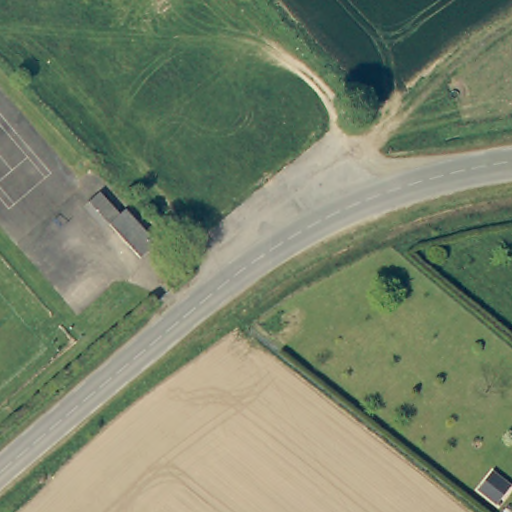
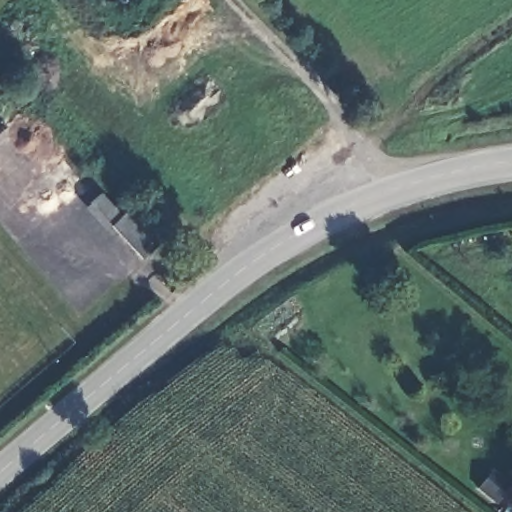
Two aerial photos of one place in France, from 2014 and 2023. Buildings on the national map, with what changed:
unchanged [(84,197),(94,188),(114,210),(121,204),(152,238),(136,253),(84,197)]
unchanged [(512,486),(498,504),(480,489),(495,472),(512,486)]

